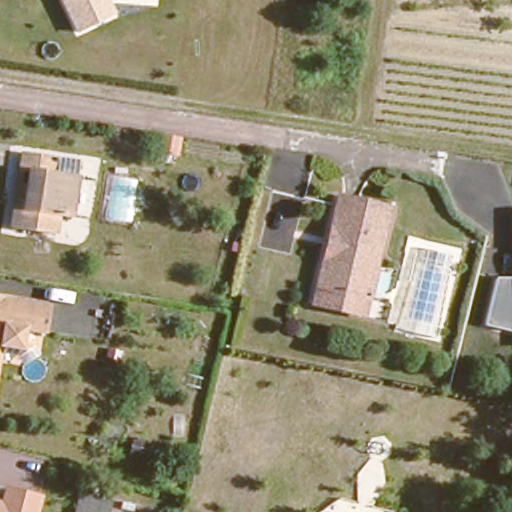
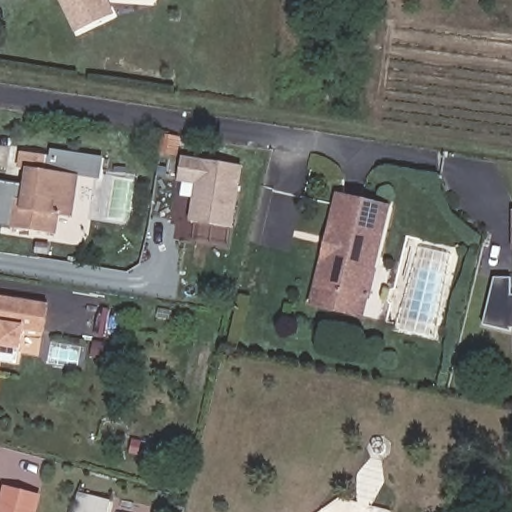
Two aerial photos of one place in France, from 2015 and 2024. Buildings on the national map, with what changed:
unchanged [(115,7),(106,12),(82,24),(69,0),(109,0),(115,7)]
unchanged [(59,229),(10,221),(14,194),(19,165),(20,149),(81,157),(74,208),(60,209),(59,229)]
new [(229,223),(188,217),(194,180),(177,177),(180,161),(237,169),(229,223)]
unchanged [(314,296),(327,252),(335,255),(344,222),(335,219),(343,192),(391,206),(360,308),(314,296)]
unchanged [(47,304),(42,328),(25,323),(19,345),(4,341),(1,351),(0,351),(0,293),(47,304)]
unchanged [(1,351),(0,357),(0,351),(1,351)]
unchanged [(108,496),(103,512),(67,512),(76,486),(108,496)]
unchanged [(36,503),(34,512),(1,512),(5,495),(36,503)]

